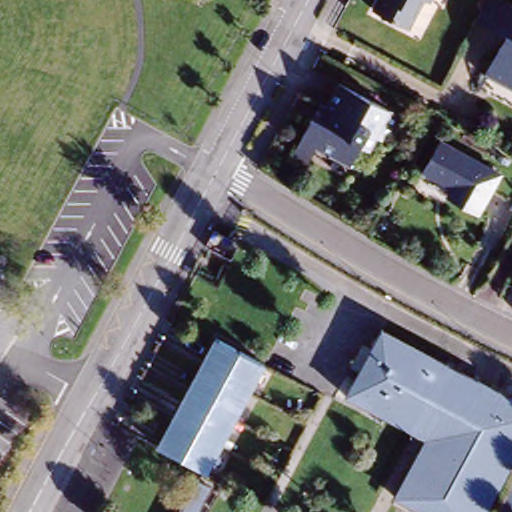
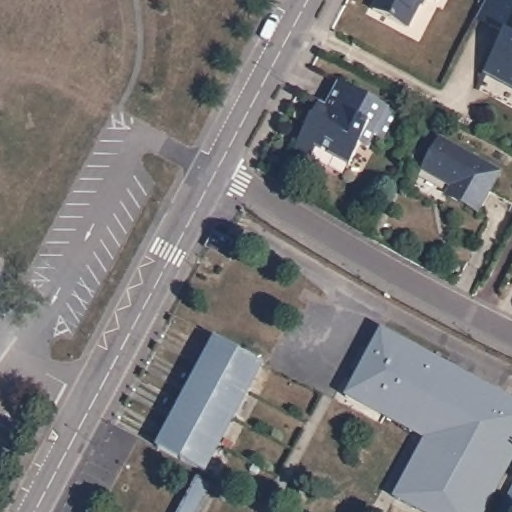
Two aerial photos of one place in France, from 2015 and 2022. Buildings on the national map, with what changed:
unchanged [(425,2),(420,0),(405,29),(372,11),(378,0),(427,0),(425,2)]
unchanged [(512,90),(488,77),(479,91),(475,89),(500,47),(505,49),(509,39),(475,21),(488,0),(499,0),(512,7),(512,90)]
unchanged [(397,116),(385,140),(374,134),(366,150),(358,145),(347,165),(331,157),(331,153),(315,145),(306,161),(291,154),(310,118),(315,120),(322,105),(326,105),(338,84),(397,116)]
unchanged [(502,176),(481,215),(450,199),(455,189),(426,173),(442,144),(502,176)]
unchanged [(210,243),(216,231),(230,238),(213,271),(200,262),(210,243)]
unchanged [(494,482),(479,512),(420,512),(390,496),(422,435),(346,396),(380,331),(467,376),(512,400),(512,448),(509,453),(512,455),(512,471),(502,466),(494,482)]
unchanged [(258,359),(201,471),(157,448),(215,336),(258,359)]
unchanged [(512,503),(508,512),(494,512),(512,476),(512,503)]
unchanged [(202,512),(175,512),(190,481),(213,492),(202,512)]

